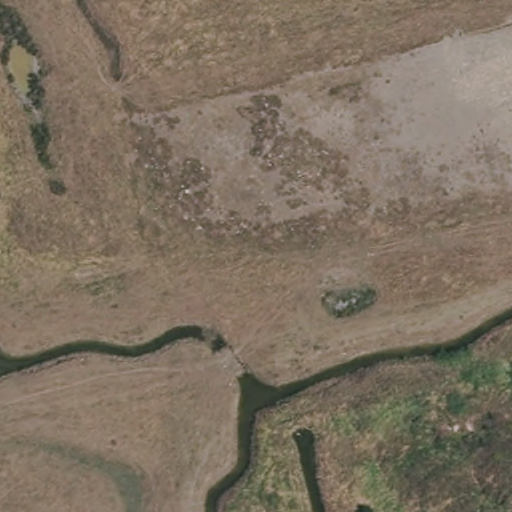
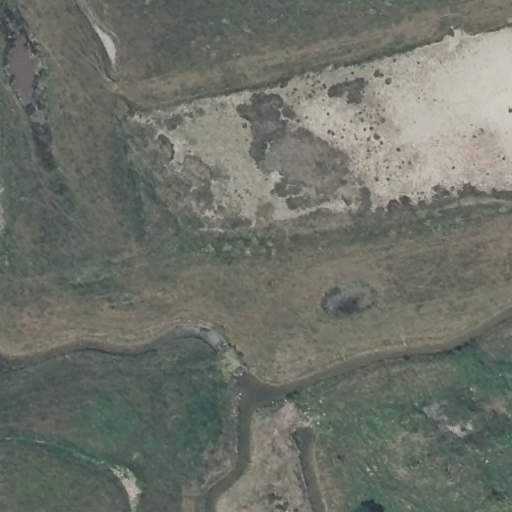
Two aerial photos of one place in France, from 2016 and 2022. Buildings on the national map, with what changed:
[]

